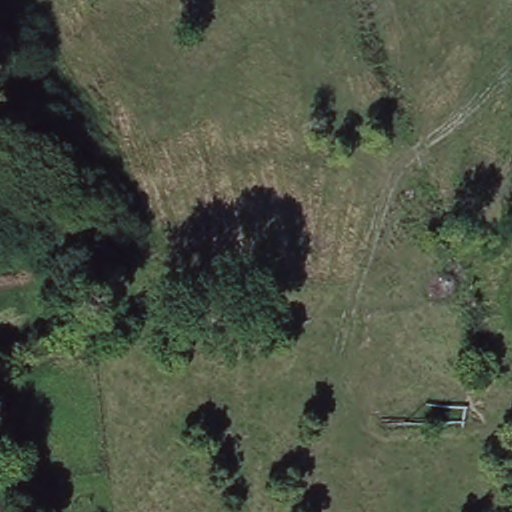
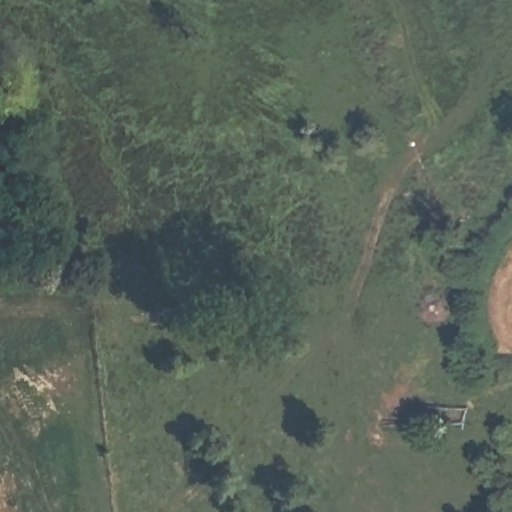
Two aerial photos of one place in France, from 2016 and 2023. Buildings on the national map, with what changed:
[]

